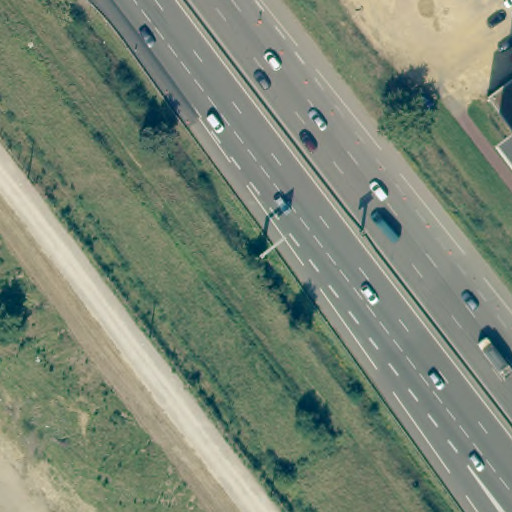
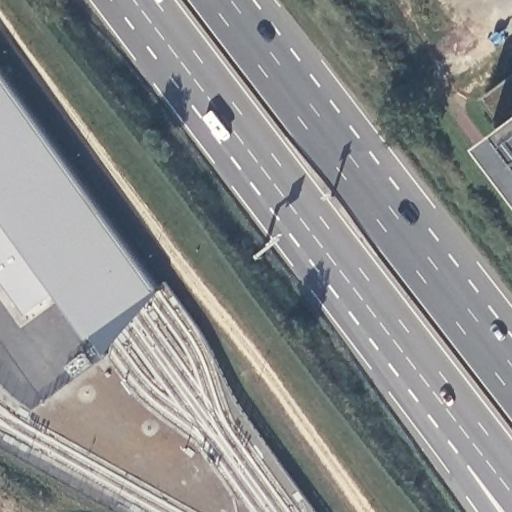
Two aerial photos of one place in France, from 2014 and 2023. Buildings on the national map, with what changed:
new [(107,358),(60,296),(27,317),(0,279),(0,70),(161,296),(107,358)]
unchanged [(512,132),(487,100),(512,82),(512,132)]
unchanged [(512,133),(512,173),(493,148),(512,133)]

